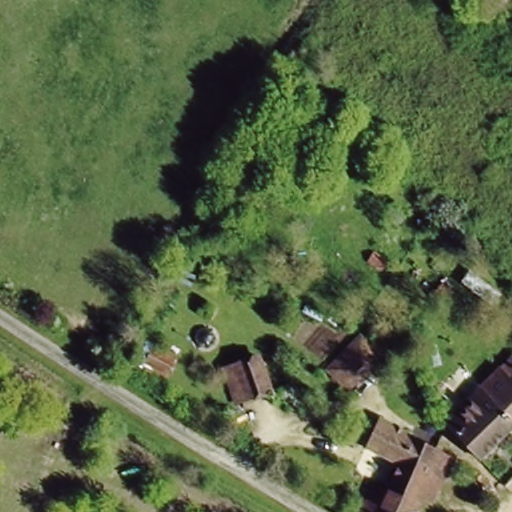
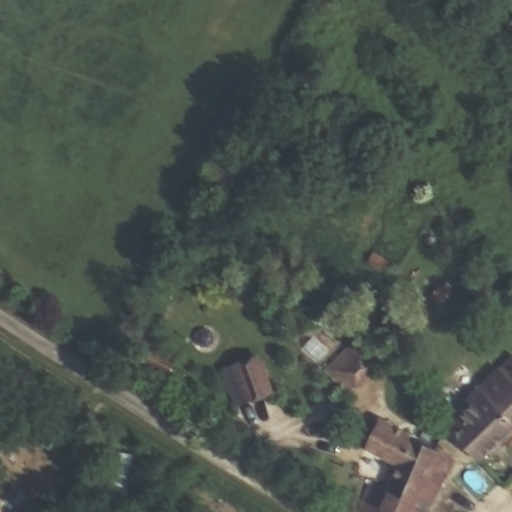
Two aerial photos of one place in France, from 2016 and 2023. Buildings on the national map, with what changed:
unchanged [(326,369),(362,332),(388,360),(350,396),(326,369)]
unchanged [(512,353),(512,419),(479,386),(512,353)]
unchanged [(222,367),(263,354),(274,392),(233,404),(222,367)]
unchanged [(444,421),(479,386),(512,419),(512,420),(478,455),(477,454),(444,421)]
unchanged [(408,512),(358,512),(370,485),(386,493),(398,465),(365,448),(377,420),(435,449),(415,496),(408,512)]
unchanged [(456,460),(430,504),(415,496),(435,449),(456,460)]

